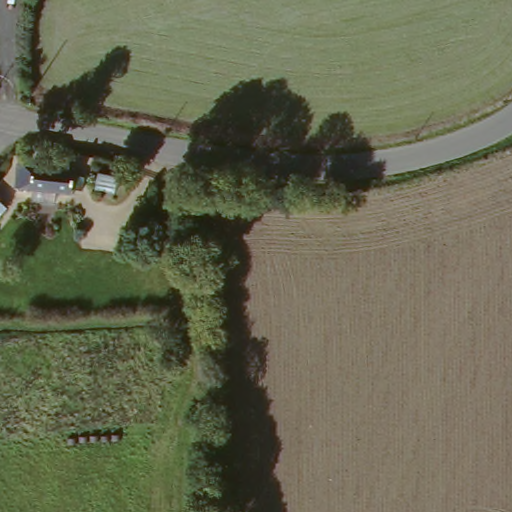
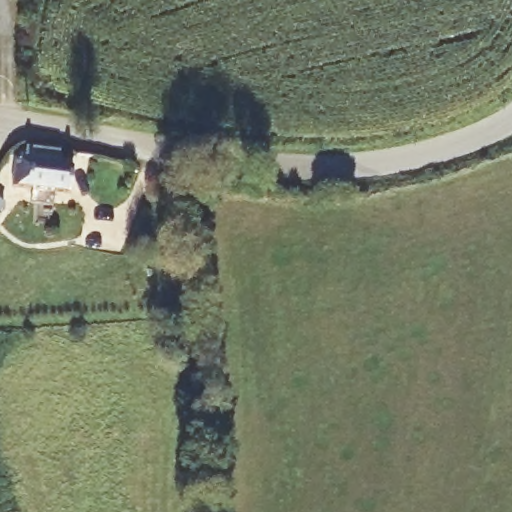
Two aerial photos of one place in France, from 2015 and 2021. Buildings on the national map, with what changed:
unchanged [(77,168),(74,195),(18,191),(19,164),(77,168)]
unchanged [(0,219),(0,215),(2,217),(0,219)]

